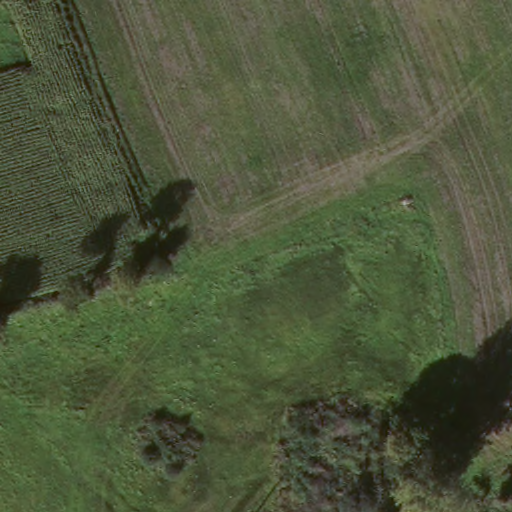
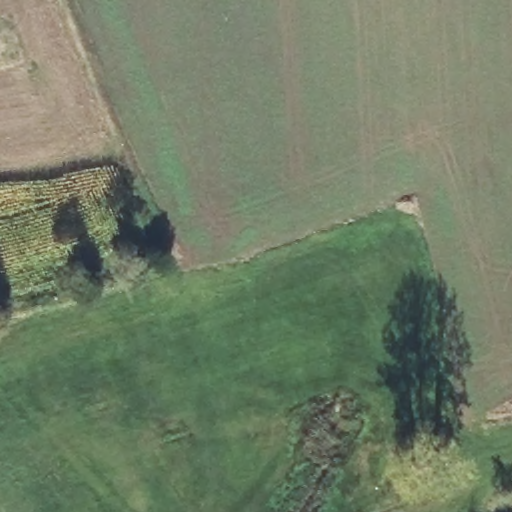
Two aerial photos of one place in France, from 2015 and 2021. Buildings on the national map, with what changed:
[]

